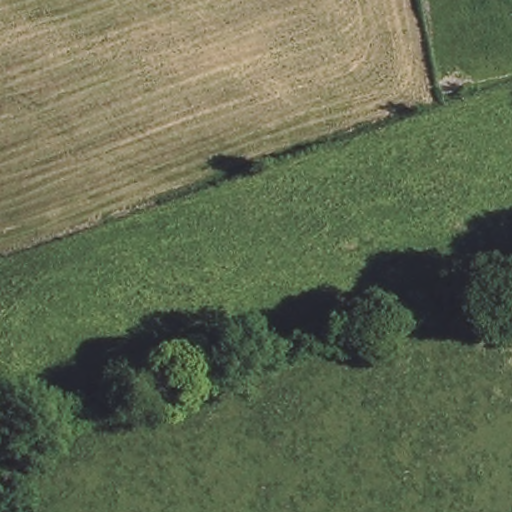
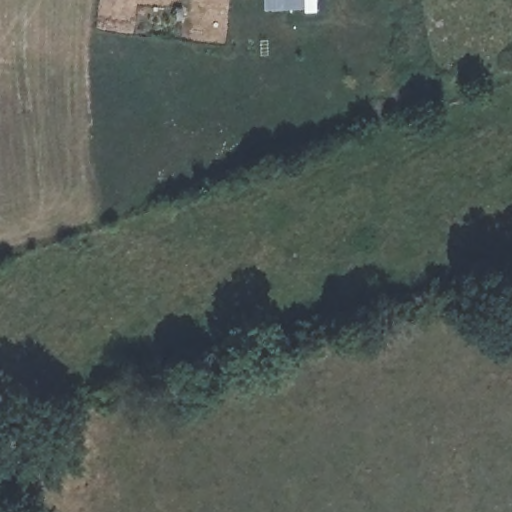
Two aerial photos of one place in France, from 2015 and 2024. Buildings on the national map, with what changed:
new [(317,11),(263,11),(262,0),(316,0),(317,11)]

